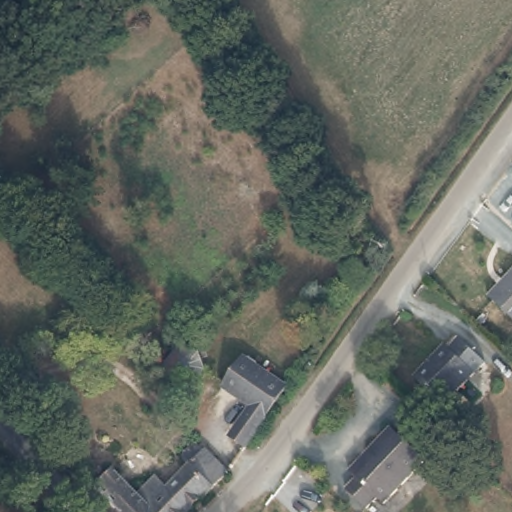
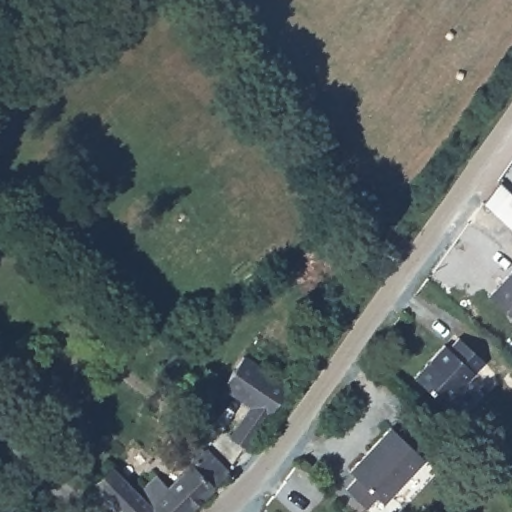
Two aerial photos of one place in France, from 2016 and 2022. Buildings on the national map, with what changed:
unchanged [(485,297),(512,268),(512,320),(485,297)]
unchanged [(439,407),(407,380),(434,350),(439,354),(450,342),(477,366),(439,407)]
unchanged [(226,445),(236,431),(248,416),(218,394),(240,366),(283,397),(253,441),(241,457),(226,445)]
unchanged [(380,508),(372,502),(364,512),(361,512),(341,494),(351,482),(344,477),(384,432),(420,463),(380,508)]
unchanged [(83,492),(104,474),(126,492),(129,495),(149,480),(162,487),(185,466),(178,456),(186,448),(194,457),(200,452),(225,472),(187,512),(102,512),(83,492)]

